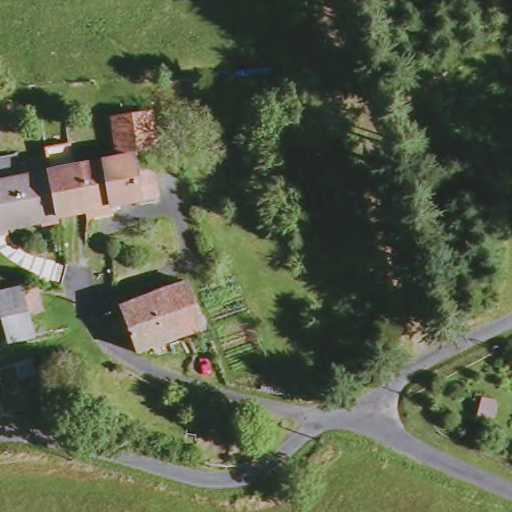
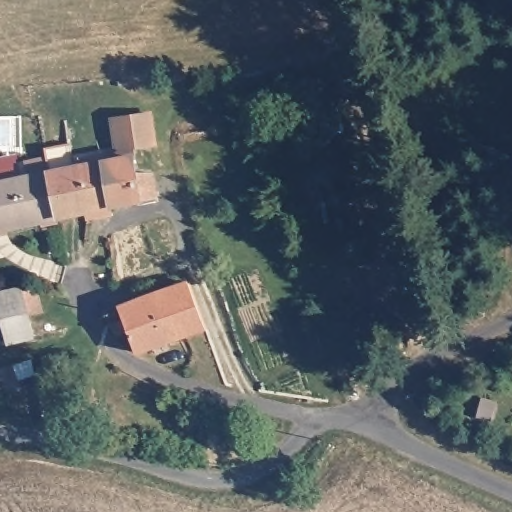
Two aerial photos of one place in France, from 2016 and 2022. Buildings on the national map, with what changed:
unchanged [(15,184),(47,178),(53,177),(115,165),(110,125),(147,120),(151,150),(128,153),(129,161),(131,174),(143,172),(157,176),(163,185),(163,197),(121,207),(56,223),(0,237),(0,162),(9,161),(15,184)]
unchanged [(133,357),(126,341),(115,342),(111,326),(120,323),(116,308),(125,305),(185,284),(205,332),(133,357)]
unchanged [(5,349),(0,331),(0,300),(19,297),(32,338),(33,342),(5,349)]

